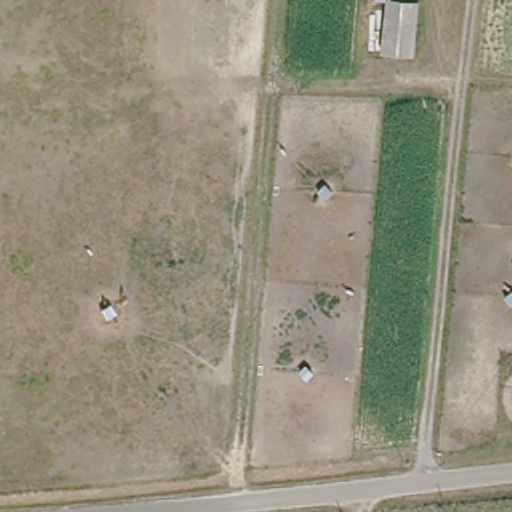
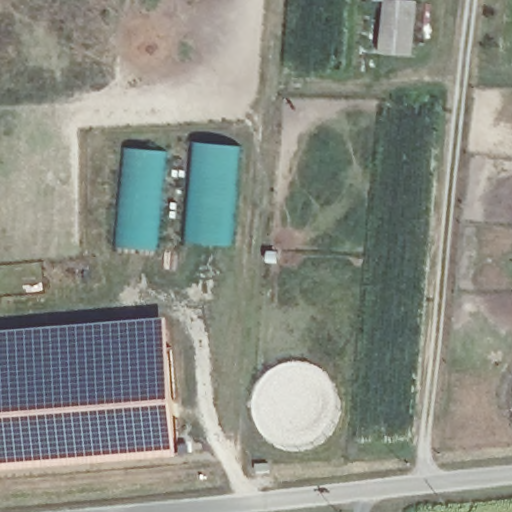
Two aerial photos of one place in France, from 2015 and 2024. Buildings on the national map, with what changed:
unchanged [(386,0),(386,4),(409,5),(407,52),(359,49),(361,0),(386,0)]
new [(187,191),(194,140),(242,145),(232,245),(185,241),(187,191)]
new [(118,191),(123,145),(167,150),(159,249),(115,246),(118,191)]
new [(180,453),(0,470),(0,360),(170,346),(180,453)]

